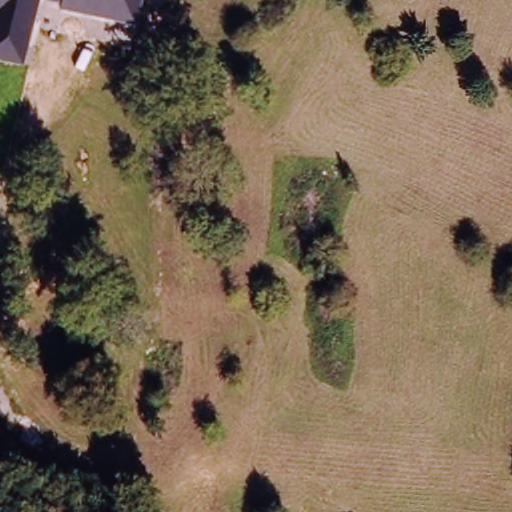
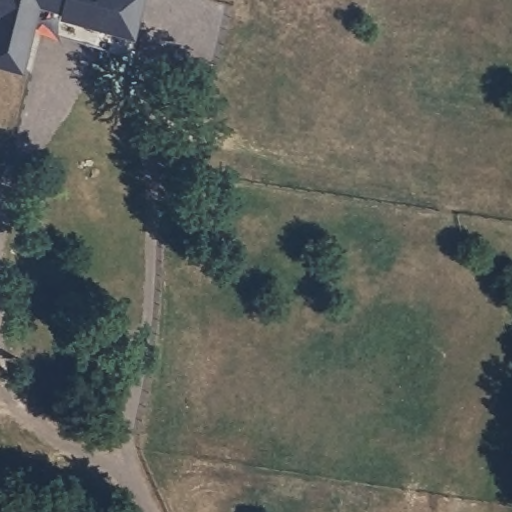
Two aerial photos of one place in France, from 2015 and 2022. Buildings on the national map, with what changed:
unchanged [(62,18),(63,11),(43,6),(27,71),(0,64),(0,0),(146,0),(137,36),(62,18)]

